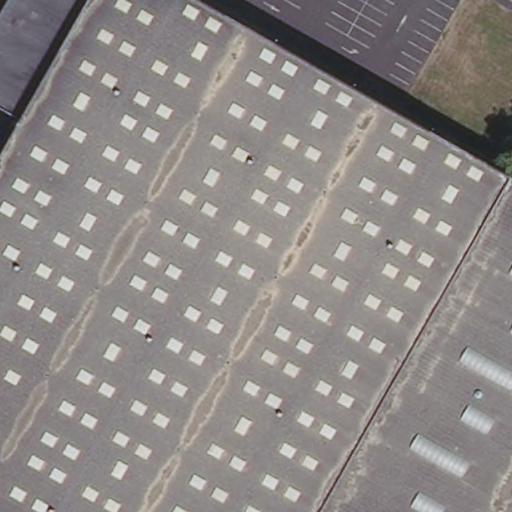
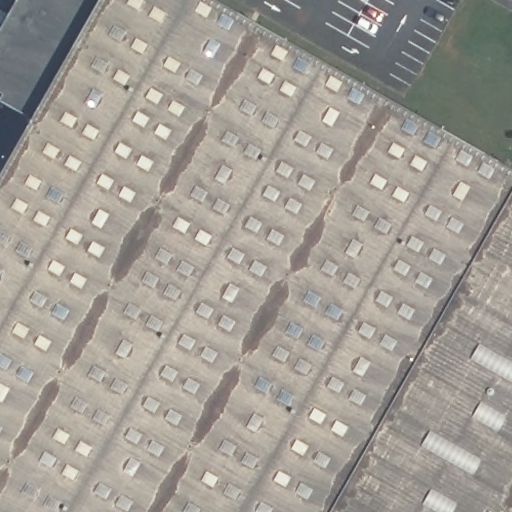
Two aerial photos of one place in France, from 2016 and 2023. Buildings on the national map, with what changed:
unchanged [(84,0),(20,118),(0,108),(0,22),(12,0),(84,0)]
unchanged [(512,512),(0,512),(0,154),(20,118),(84,0),(217,0),(512,161),(512,512)]

